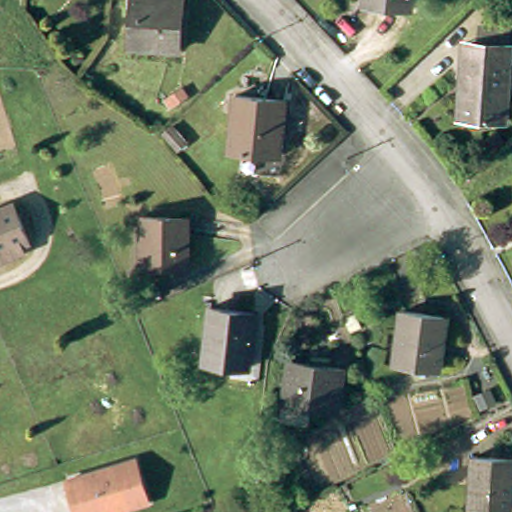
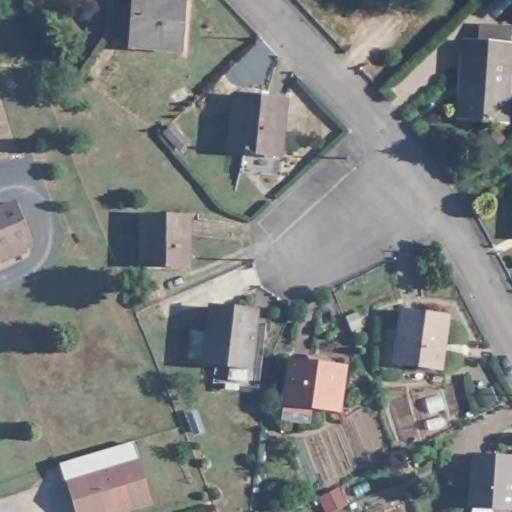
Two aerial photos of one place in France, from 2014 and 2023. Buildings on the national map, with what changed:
unchanged [(368,0),(412,0),(410,12),(367,4),(368,0)]
unchanged [(135,2),(186,7),(181,60),(132,54),(135,2)]
unchanged [(463,53),(465,35),(476,37),(482,37),(484,21),(512,26),(512,36),(511,41),(505,116),(466,112),(458,111),(461,80),(463,53)]
unchanged [(238,102),(287,106),(282,163),(231,157),(238,102)]
unchanged [(486,137),(498,129),(505,138),(492,145),(486,137)]
unchanged [(24,242),(17,245),(20,252),(0,260),(0,209),(10,205),(24,242)]
unchanged [(177,275),(141,272),(143,223),(187,224),(186,255),(185,275),(177,275)]
unchanged [(211,308),(252,314),(245,370),(203,363),(211,308)]
unchanged [(410,314),(449,323),(438,373),(399,364),(410,314)]
unchanged [(296,369),(344,371),(341,410),(293,408),(296,369)]
unchanged [(474,456),(512,462),(512,487),(507,511),(467,505),(474,456)]
unchanged [(145,509),(137,512),(74,512),(67,487),(133,468),(145,509)]

